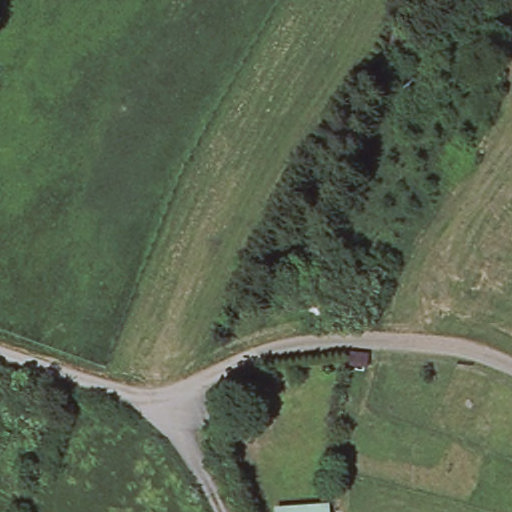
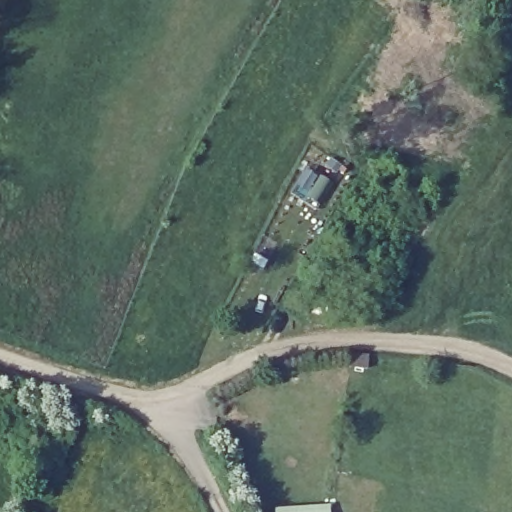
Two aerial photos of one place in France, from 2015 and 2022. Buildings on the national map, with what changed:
unchanged [(333,184),(317,210),(300,198),(317,173),(333,184)]
unchanged [(332,507),(333,512),(283,512),(332,507)]

